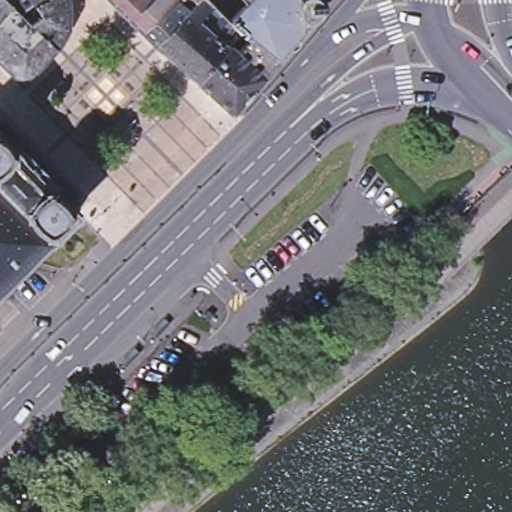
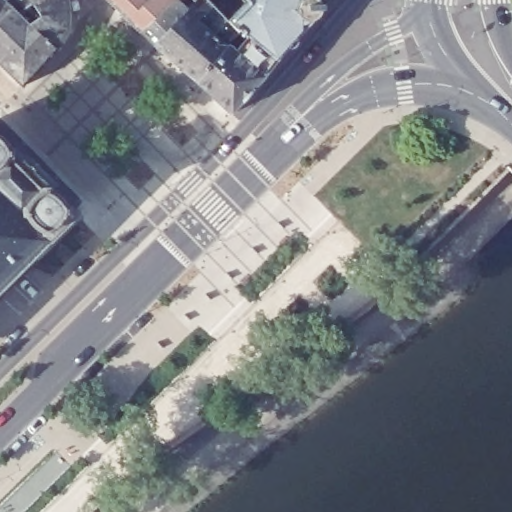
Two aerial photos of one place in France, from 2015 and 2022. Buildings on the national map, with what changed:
unchanged [(62,51),(61,52),(28,88),(0,60),(0,0),(73,0),(75,11),(74,30),(62,51)]
unchanged [(197,89),(156,51),(142,37),(105,0),(301,0),(301,4),(305,2),(307,1),(311,1),(315,1),(317,3),(319,4),(321,8),(322,10),(325,10),(326,16),(323,16),(323,17),(322,19),(320,24),(278,65),(277,66),(261,86),(232,119),(197,89)]
unchanged [(8,151),(10,149),(11,151),(15,148),(21,153),(19,155),(21,158),(20,159),(21,161),(20,163),(40,182),(41,181),(42,182),(43,180),(46,183),(48,181),(54,187),(50,190),(51,192),(50,194),(65,209),(67,208),(68,209),(70,207),(76,213),(75,214),(78,217),(72,222),(71,220),(56,235),(57,237),(51,243),(50,242),(0,290),(0,142),(8,151)]

